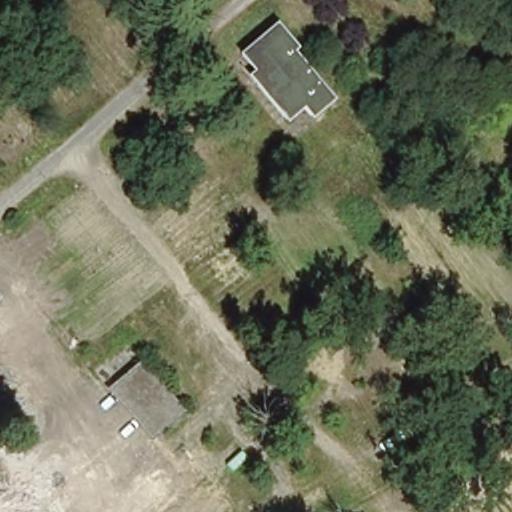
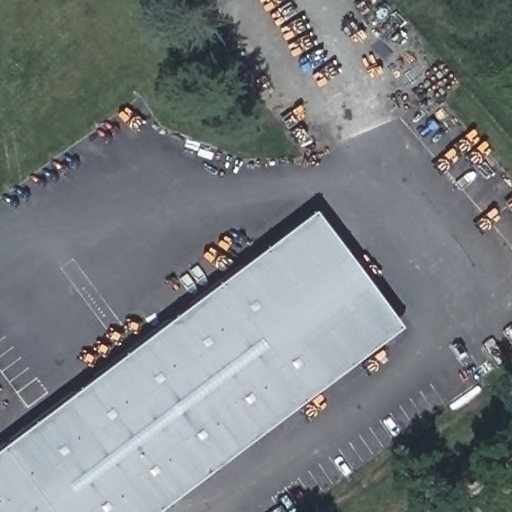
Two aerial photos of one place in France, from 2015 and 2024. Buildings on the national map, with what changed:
demolished [(272,22),(335,97),(312,120),(298,106),(283,117),(232,56),(272,22)]
new [(400,327),(155,512),(0,512),(0,444),(311,210),(400,327)]
demolished [(139,363),(185,410),(145,438),(107,390),(139,363)]
demolished [(26,512),(0,512),(0,497),(10,489),(26,512)]

